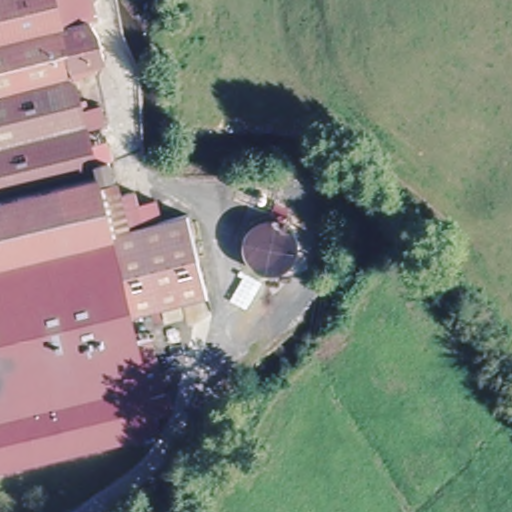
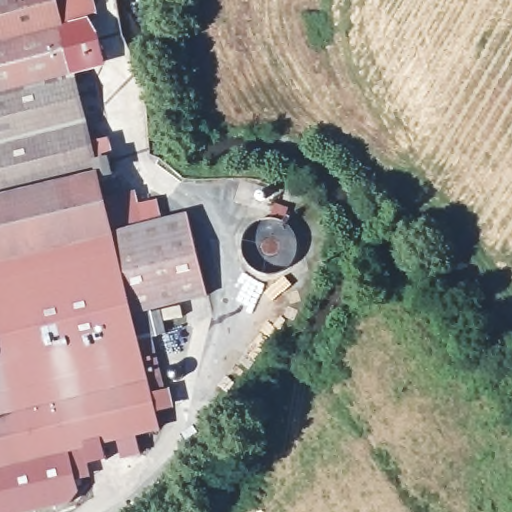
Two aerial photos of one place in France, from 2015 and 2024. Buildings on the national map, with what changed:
unchanged [(84,21),(99,60),(67,72),(89,163),(104,159),(110,184),(96,188),(98,199),(106,229),(107,234),(183,215),(202,296),(127,315),(136,351),(147,348),(155,378),(142,381),(147,400),(29,429),(0,435),(0,0),(86,0),(88,8),(84,21)]
unchanged [(134,204),(151,200),(155,218),(106,229),(98,199),(131,192),(134,204)]
unchanged [(139,433),(69,450),(0,466),(0,435),(29,429),(147,400),(154,429),(149,431),(151,440),(141,442),(139,433)]
new [(80,500),(29,512),(0,512),(0,466),(69,450),(80,500)]

